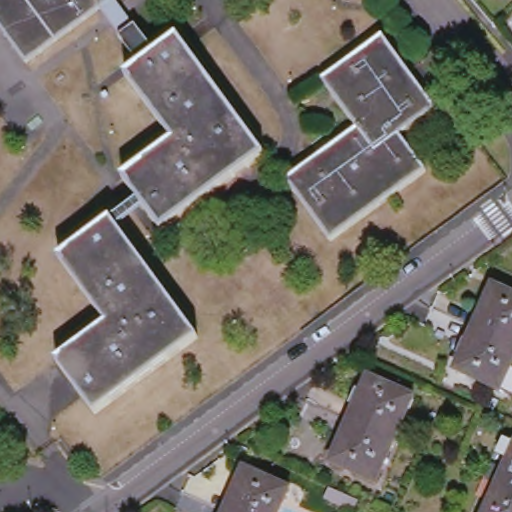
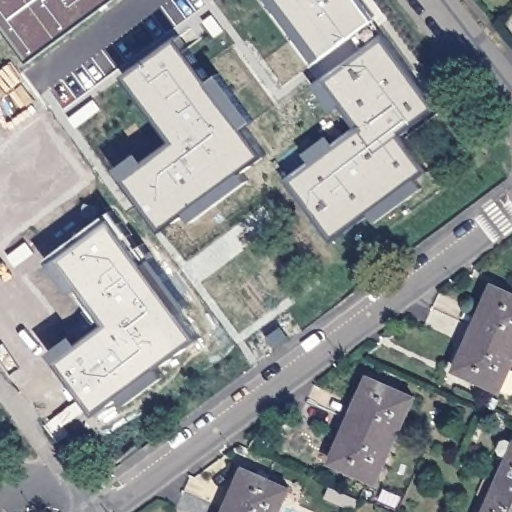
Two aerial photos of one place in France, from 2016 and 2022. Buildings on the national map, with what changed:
unchanged [(27,63),(0,27),(0,0),(113,0),(101,9),(27,63)]
new [(348,0),(365,24),(317,58),(275,0),(348,0)]
unchanged [(427,170),(332,240),(288,179),(358,128),(323,80),(383,35),(436,108),(401,135),(427,170)]
unchanged [(58,361),(107,324),(60,258),(113,220),(140,201),(124,177),(173,141),(126,76),(140,65),(157,53),(179,37),(266,155),(162,230),(148,210),(121,229),(200,338),(96,414),(58,361)]
unchanged [(512,294),(512,345),(475,328),(493,285),(512,294)]
unchanged [(475,328),(512,345),(512,395),(455,370),(475,328)]
unchanged [(369,377),(415,397),(395,440),(350,419),(369,377)]
unchanged [(331,461),(350,419),(395,440),(376,482),(331,461)]
unchanged [(498,463),(510,468),(512,464),(512,489),(502,485),(492,479),(498,463)]
unchanged [(245,469),(290,488),(280,512),(228,512),(226,511),(245,469)]
unchanged [(354,509),(327,496),(333,485),(359,500),(354,509)]
unchanged [(502,485),(512,489),(512,512),(490,512),(502,485)]
unchanged [(226,511),(228,512),(226,512),(226,511)]

